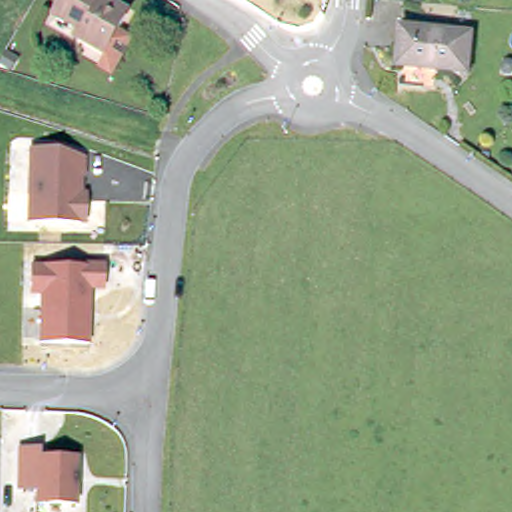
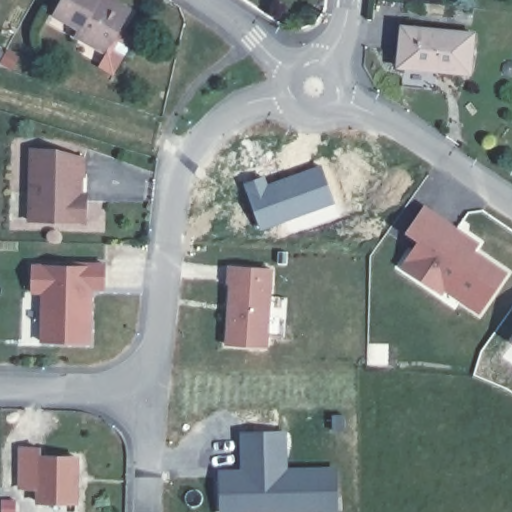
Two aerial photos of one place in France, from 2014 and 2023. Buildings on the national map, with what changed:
unchanged [(125,7),(105,44),(74,26),(77,20),(52,6),(55,0),(123,0),(127,3),(125,7)]
unchanged [(470,73),(398,66),(402,26),(473,33),(470,73)]
unchanged [(87,203),(85,224),(29,221),(32,150),(57,151),(85,159),(85,178),(77,177),(77,195),(87,195),(87,203)]
new [(480,241),(475,249),(507,272),(479,313),(445,290),(442,294),(400,267),(417,242),(404,234),(425,204),(480,241)]
unchanged [(90,344),(39,343),(41,294),(31,294),(32,264),(104,263),(105,290),(92,290),(90,344)]
new [(225,283),(227,264),(272,268),(267,347),(225,344),(229,283),(225,283)]
new [(220,473),(242,473),(242,434),(284,433),(285,471),(335,469),(337,512),(320,512),(288,512),(288,508),(221,511),(220,473)]
unchanged [(43,449),(43,458),(79,459),(77,504),(40,503),(40,489),(22,488),(24,449),(43,449)]

